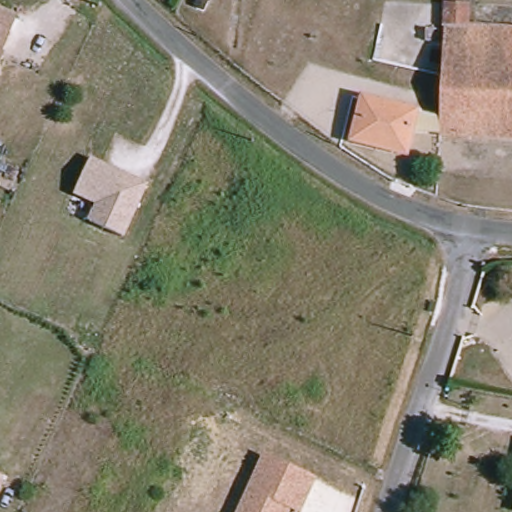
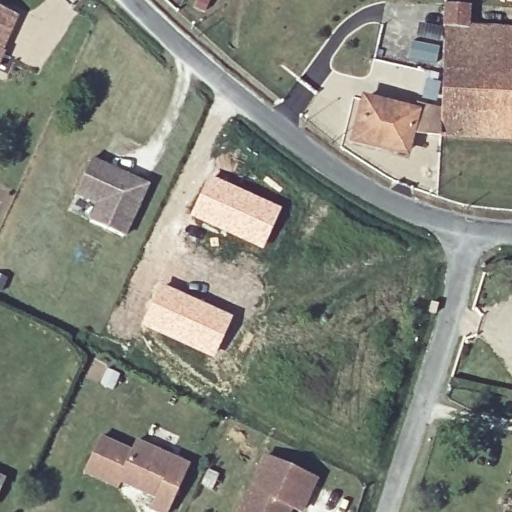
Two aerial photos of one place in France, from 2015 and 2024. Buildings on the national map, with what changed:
unchanged [(435,134),(427,133),(429,117),(435,77),(441,7),(465,8),(464,30),(512,31),(512,139),(435,134)]
unchanged [(7,35),(0,31),(0,11),(14,18),(7,35)]
unchanged [(0,57),(0,53),(1,54),(0,57)]
unchanged [(408,130),(401,156),(348,140),(361,102),(429,117),(427,133),(408,130)]
unchanged [(90,219),(96,202),(73,192),(91,154),(152,182),(129,237),(90,219)]
new [(211,176),(281,209),(262,251),(189,217),(211,176)]
new [(161,284),(233,317),(213,359),(141,326),(161,284)]
new [(94,359),(120,373),(113,390),(85,377),(94,359)]
new [(100,436),(130,448),(136,439),(189,463),(167,512),(152,512),(148,511),(154,498),(119,483),(116,489),(82,475),(100,436)]
unchanged [(265,452),(319,477),(303,512),(302,512),(292,507),(290,512),(237,512),(265,452)]

